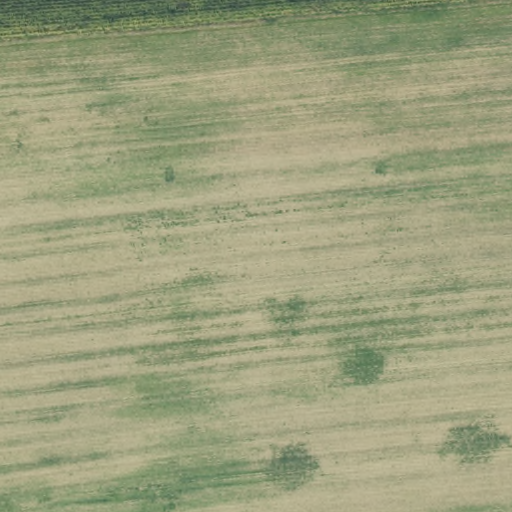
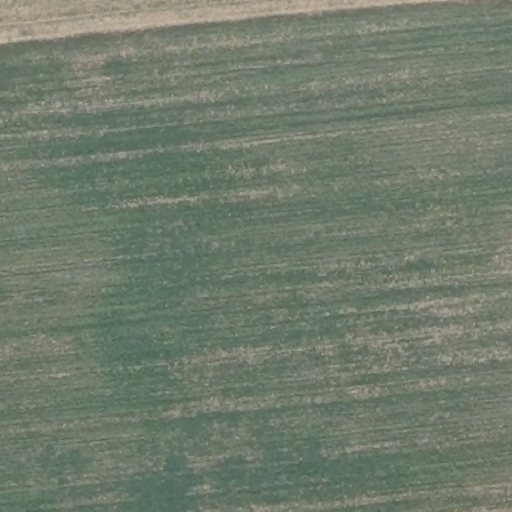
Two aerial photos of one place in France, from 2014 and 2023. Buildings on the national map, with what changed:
[]

